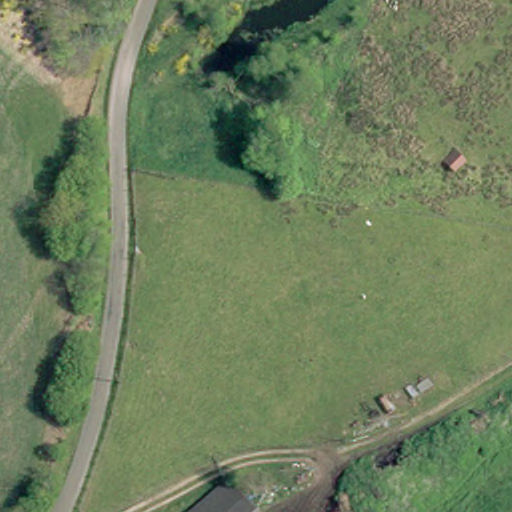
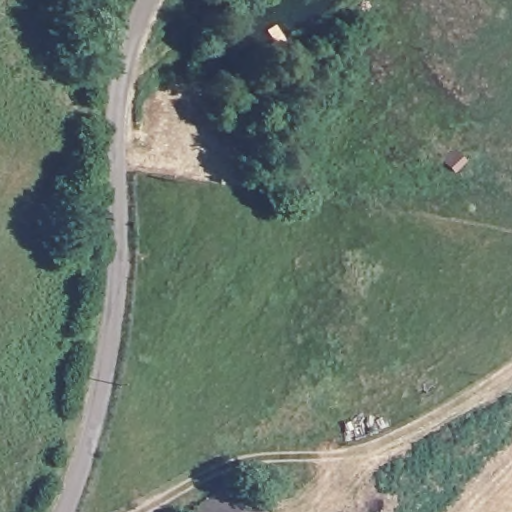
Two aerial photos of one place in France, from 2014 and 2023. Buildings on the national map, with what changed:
unchanged [(257,512),(213,512),(239,491),(257,512)]

